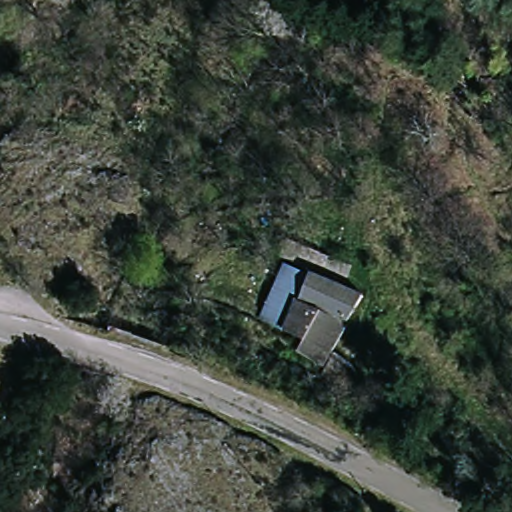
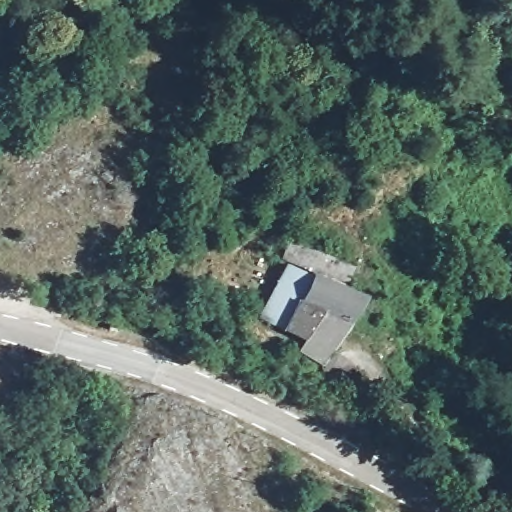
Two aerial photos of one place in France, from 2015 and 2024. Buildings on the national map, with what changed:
unchanged [(333,372),(305,360),(306,356),(283,345),(256,333),(283,275),(272,269),(280,252),(317,269),(351,282),(344,298),(363,306),(333,372)]

